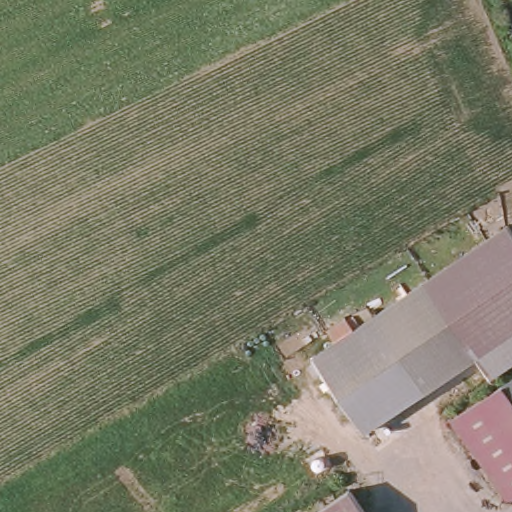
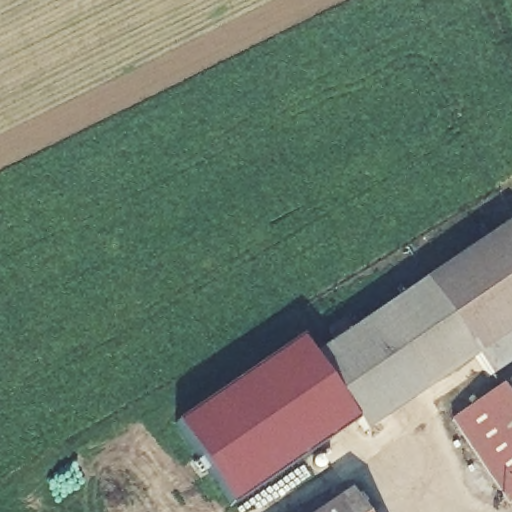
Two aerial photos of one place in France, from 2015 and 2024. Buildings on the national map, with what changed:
unchanged [(490,378),(478,357),(425,391),(401,351),(340,392),(312,355),(508,222),(512,227),(512,363),(490,378)]
new [(340,392),(401,351),(425,391),(367,433),(357,420),(230,507),(175,424),(301,338),(312,355),(340,392)]
unchanged [(498,390),(512,381),(512,498),(498,507),(450,422),(498,390)]
unchanged [(363,512),(320,512),(351,493),(363,512)]

